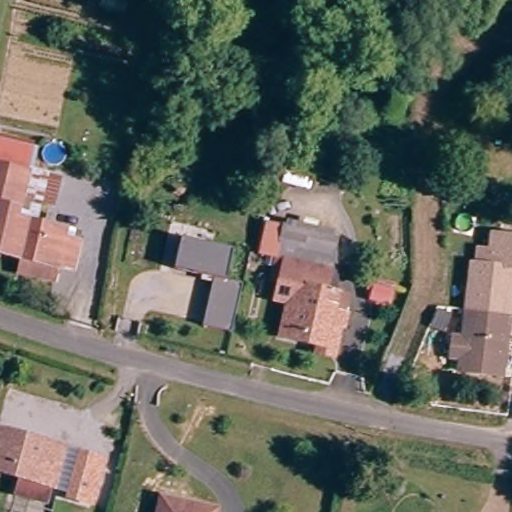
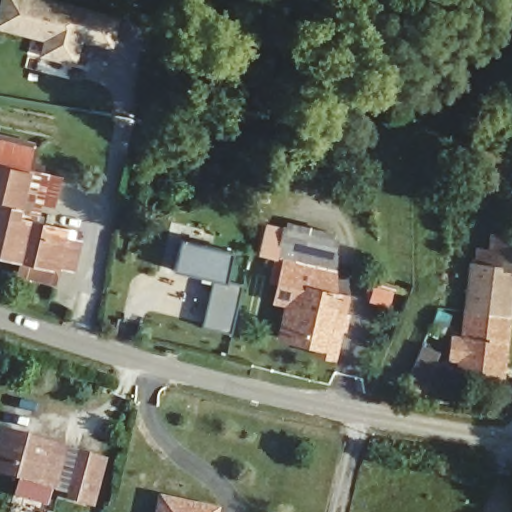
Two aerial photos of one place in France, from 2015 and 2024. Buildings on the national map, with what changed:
new [(111,47),(82,40),(75,66),(39,57),(43,40),(0,29),(0,2),(0,0),(56,0),(120,15),(111,47)]
unchanged [(38,144),(33,170),(63,177),(53,226),(17,219),(25,177),(0,172),(0,137),(38,144)]
unchanged [(17,271),(20,257),(0,253),(0,172),(25,177),(17,219),(53,226),(62,228),(60,236),(79,240),(75,264),(57,260),(57,264),(53,278),(17,271)]
unchanged [(321,347),(323,340),(285,331),(294,297),(281,294),(285,277),(277,275),(283,252),(267,248),(274,218),(293,223),(295,218),(341,229),(339,234),(344,235),(331,287),(353,292),(340,344),(338,351),(321,347)]
unchanged [(240,245),(233,274),(248,278),(236,326),(207,319),(219,272),(180,262),(187,232),(240,245)]
unchanged [(512,238),(512,295),(484,293),(491,235),(512,238)]
unchanged [(512,360),(502,359),(500,375),(447,368),(451,338),(469,340),(471,320),(480,321),(484,293),(512,295),(512,360)]
unchanged [(52,471),(47,470),(43,486),(13,479),(17,463),(0,460),(0,421),(60,435),(52,471)]
unchanged [(100,443),(91,486),(69,482),(78,438),(100,443)]
unchanged [(164,499),(214,510),(213,512),(161,512),(164,499)]

